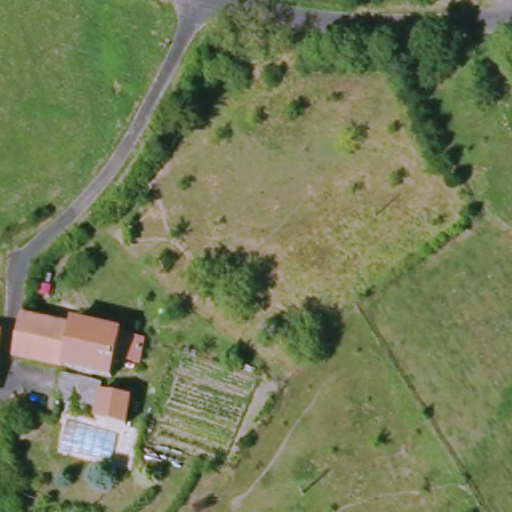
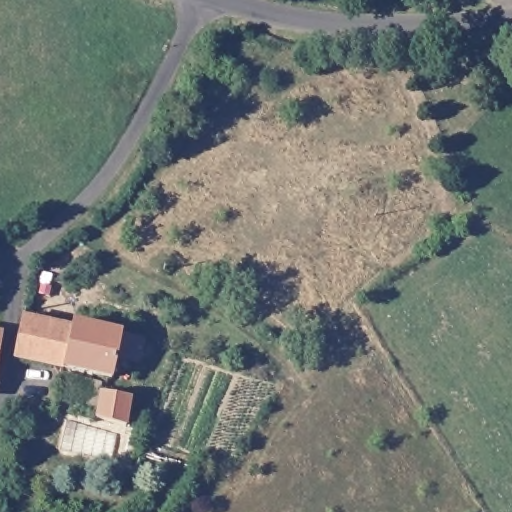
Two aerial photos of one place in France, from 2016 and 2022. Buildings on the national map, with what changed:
unchanged [(142,335),(138,358),(114,352),(109,371),(13,348),(21,309),(142,335)]
unchanged [(3,332),(0,343),(0,332),(3,332)]
unchanged [(88,374),(82,396),(53,389),(58,367),(88,374)]
unchanged [(107,388),(134,394),(129,420),(102,414),(107,388)]

